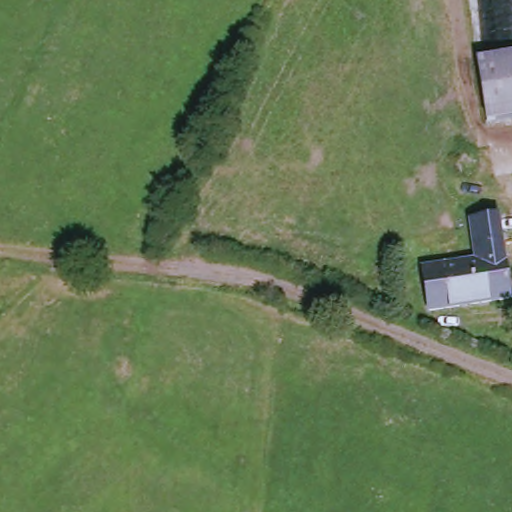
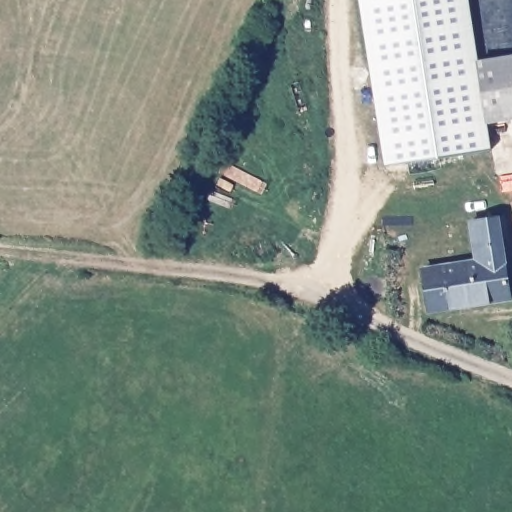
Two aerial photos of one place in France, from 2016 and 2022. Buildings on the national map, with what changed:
new [(493,124),(488,124),(491,147),(385,164),(359,0),(470,0),(480,62),(485,62),(493,124)]
unchanged [(493,124),(485,62),(512,59),(512,121),(493,124)]
unchanged [(475,225),(500,221),(511,302),(431,312),(426,269),(480,262),(475,225)]

